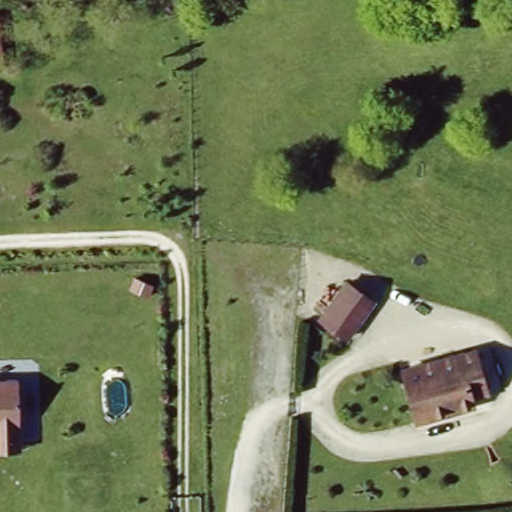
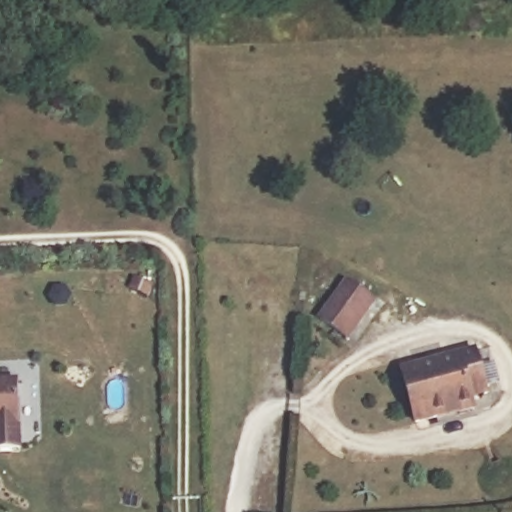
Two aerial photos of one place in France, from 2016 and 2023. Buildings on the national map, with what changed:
unchanged [(351,338),(325,326),(345,292),(369,307),(351,338)]
unchanged [(476,347),(490,397),(475,402),(478,410),(419,428),(400,370),(476,347)]
unchanged [(0,385),(7,385),(12,452),(0,453),(0,385)]

